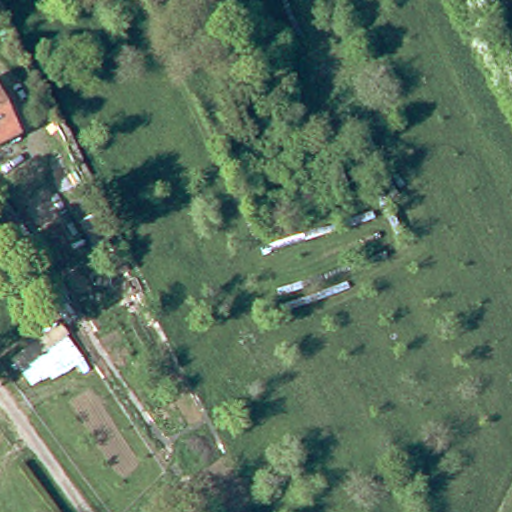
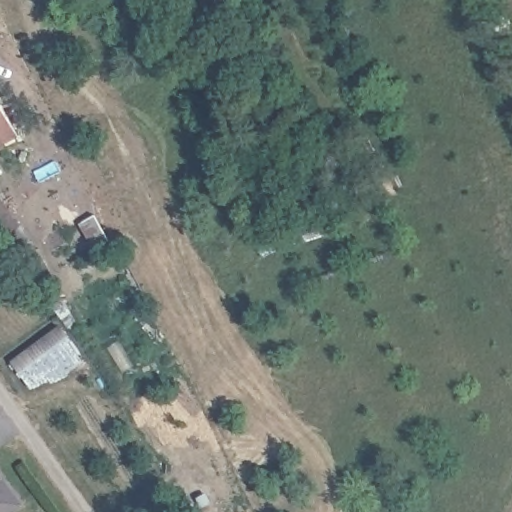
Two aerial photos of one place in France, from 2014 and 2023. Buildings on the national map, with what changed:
unchanged [(0,85),(23,130),(0,143),(0,85)]
unchanged [(8,244),(0,229),(0,204),(19,237),(8,244)]
new [(13,512),(0,512),(0,472),(24,504),(13,512)]

